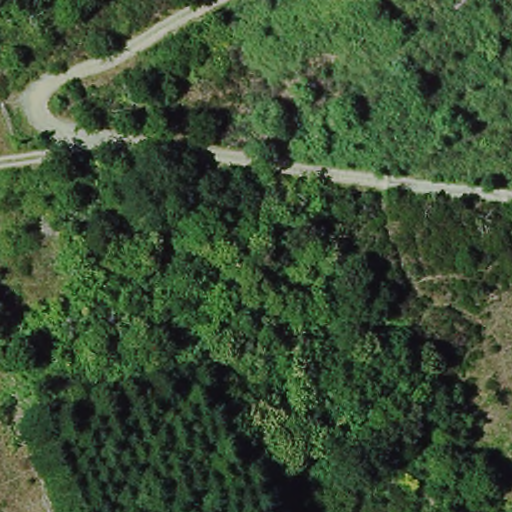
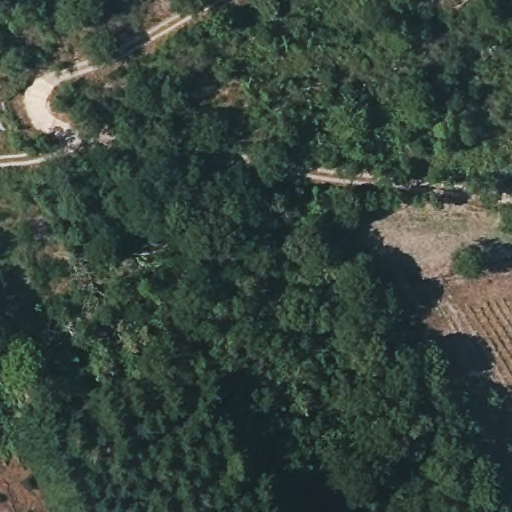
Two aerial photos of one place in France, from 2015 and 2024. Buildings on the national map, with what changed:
unchanged [(144,72),(125,80),(118,67),(138,60),(144,72)]

